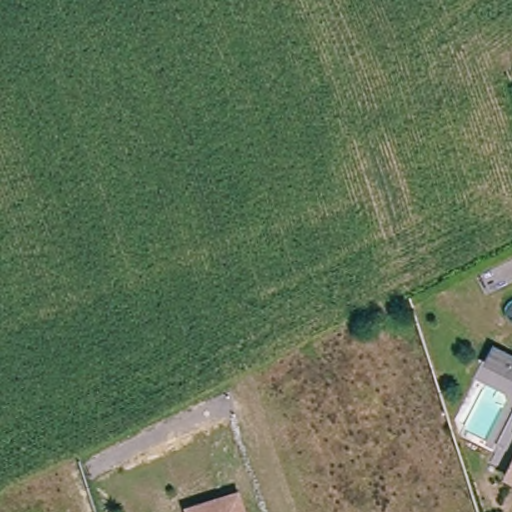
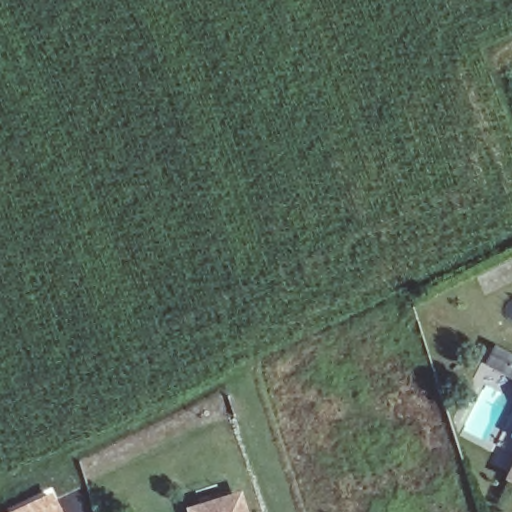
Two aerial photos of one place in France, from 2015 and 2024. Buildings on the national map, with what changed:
unchanged [(481,366),(487,352),(512,363),(512,381),(481,366)]
unchanged [(502,481),(512,460),(512,485),(502,481)]
new [(62,512),(4,512),(53,490),(62,512)]
unchanged [(185,511),(232,496),(237,512),(185,512),(185,511)]

